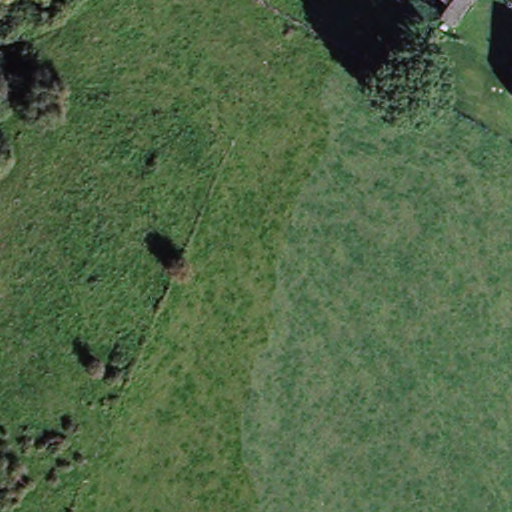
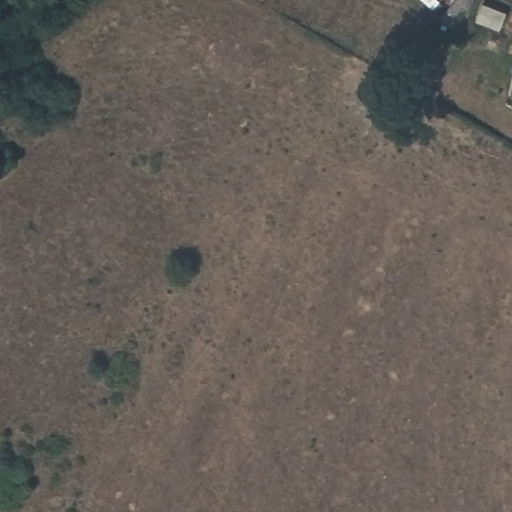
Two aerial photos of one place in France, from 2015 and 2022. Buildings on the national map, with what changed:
unchanged [(441,19),(450,6),(442,0),(474,0),(454,29),(441,19)]

